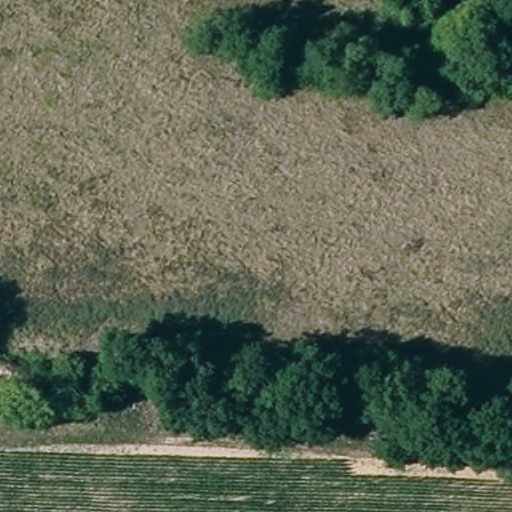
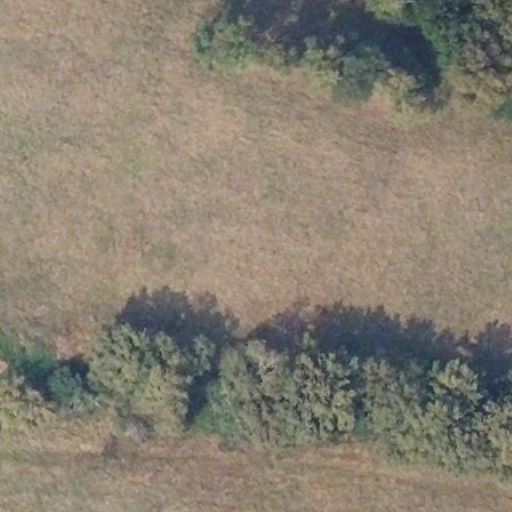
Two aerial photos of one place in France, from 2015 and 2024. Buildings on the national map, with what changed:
[]

